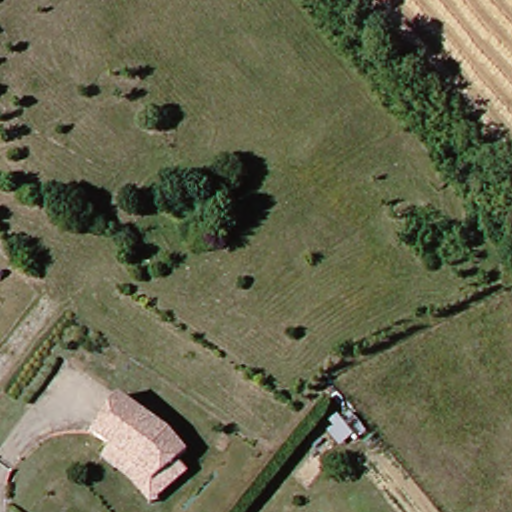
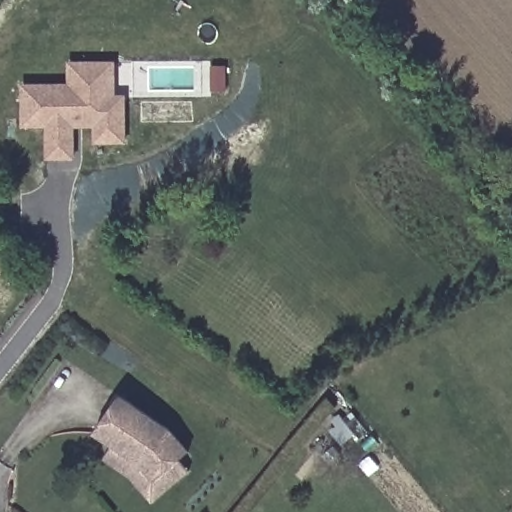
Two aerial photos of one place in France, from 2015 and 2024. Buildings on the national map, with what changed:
new [(67,80),(66,65),(110,64),(111,79),(111,97),(121,97),(122,142),(94,142),(93,121),(71,122),(72,159),(46,161),(46,128),(21,129),(21,89),(67,87),(67,80)]
unchanged [(172,426),(190,445),(181,453),(157,477),(142,462),(114,443),(96,432),(120,393),(172,426)]
unchanged [(142,462),(157,477),(181,453),(191,465),(167,488),(156,498),(134,475),(106,457),(114,443),(142,462)]

